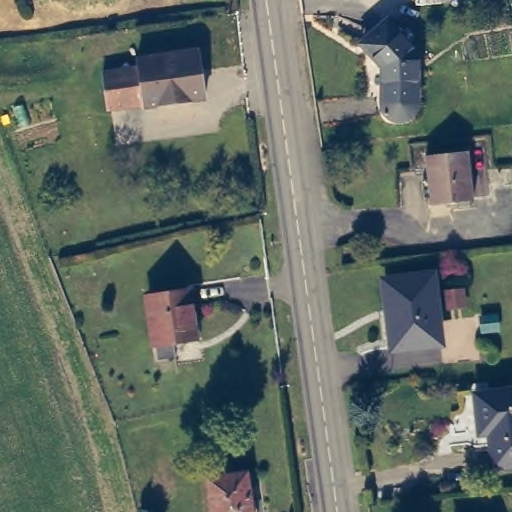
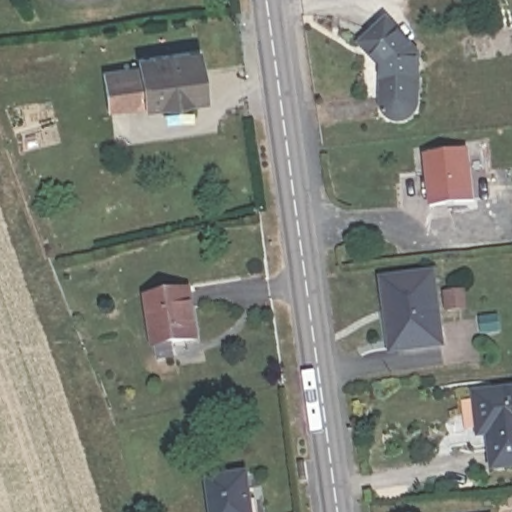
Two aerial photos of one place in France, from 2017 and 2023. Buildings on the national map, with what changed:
unchanged [(384,23),(411,53),(411,115),(401,122),(392,122),(383,114),(384,71),(360,45),(384,23)]
unchanged [(145,76),(142,62),(200,51),(210,99),(150,111),(148,108),(125,112),(120,81),(145,76)]
unchanged [(467,154),(472,202),(430,207),(424,160),(467,154)]
unchanged [(440,280),(446,346),(409,349),(406,313),(398,313),(395,284),(440,280)]
unchanged [(193,285),(202,335),(180,338),(182,356),(164,358),(151,293),(193,285)]
unchanged [(500,428),(488,429),(483,392),(482,390),(512,387),(512,459),(505,460),(500,428)]
unchanged [(253,512),(213,512),(206,477),(245,470),(253,512)]

